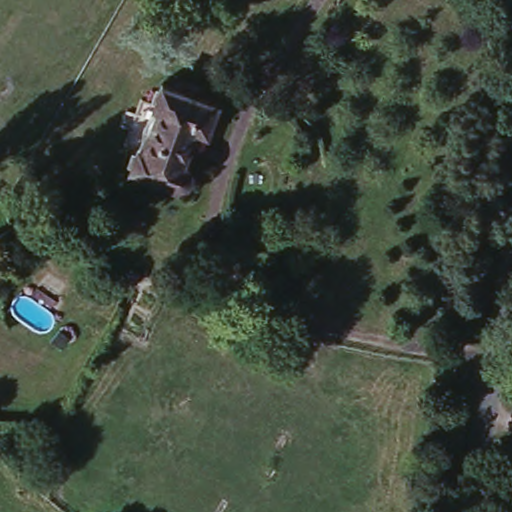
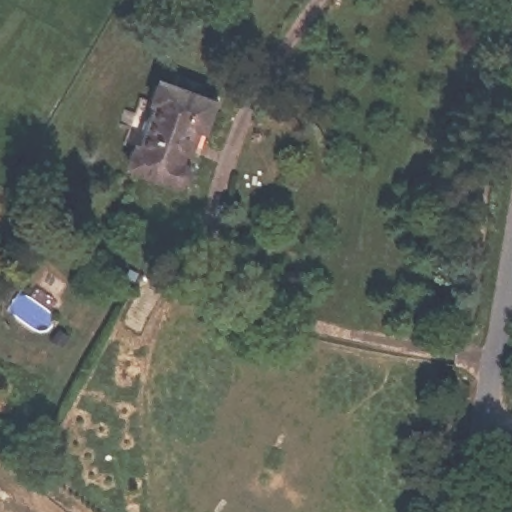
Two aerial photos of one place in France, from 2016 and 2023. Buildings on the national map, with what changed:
unchanged [(209,84),(209,91),(220,94),(210,130),(202,126),(193,158),(198,164),(199,173),(195,183),(190,188),(183,189),(132,176),(135,155),(123,151),(128,133),(119,130),(125,114),(131,115),(136,102),(146,104),(153,83),(162,84),(168,73),(209,84)]

